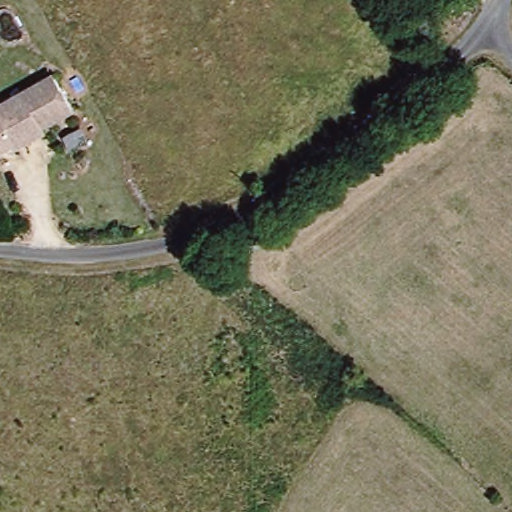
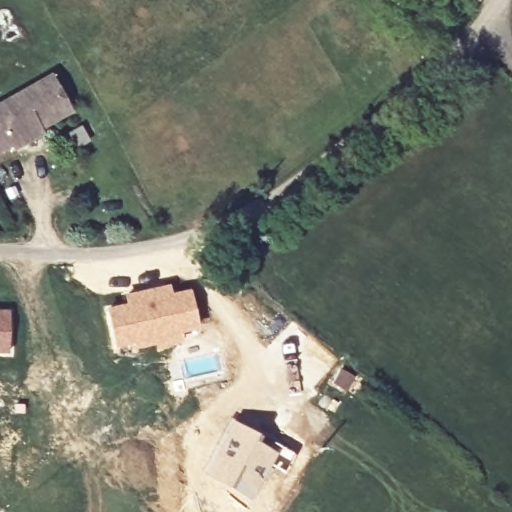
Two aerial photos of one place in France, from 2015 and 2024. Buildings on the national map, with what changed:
unchanged [(0,155),(0,107),(53,77),(72,114),(42,131),(43,135),(15,153),(11,148),(0,155)]
new [(125,303),(123,293),(170,283),(172,291),(190,288),(200,329),(182,333),(183,344),(154,351),(153,348),(137,352),(136,347),(114,351),(105,306),(125,303)]
new [(10,309),(10,355),(0,355),(0,309),(10,309)]
new [(231,417),(258,436),(227,488),(200,470),(231,417)]
new [(258,436),(279,449),(281,445),(297,453),(290,465),(277,457),(251,502),(227,488),(258,436)]

